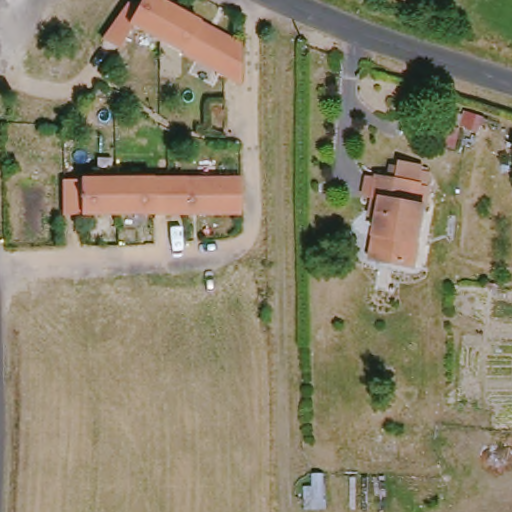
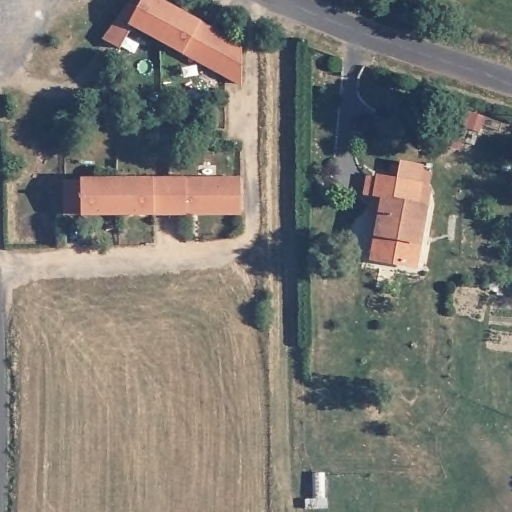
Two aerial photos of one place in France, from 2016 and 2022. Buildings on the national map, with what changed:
unchanged [(137,0),(147,0),(238,46),(238,84),(127,28),(114,53),(101,46),(123,9),(130,12),(137,0)]
unchanged [(412,203),(427,203),(426,264),(380,263),(381,215),(373,214),(373,177),(382,177),(382,164),(391,164),(391,160),(411,160),(412,203)]
unchanged [(147,212),(189,175),(237,173),(238,207),(147,212)]
unchanged [(60,180),(189,175),(147,212),(60,216),(60,180)]

